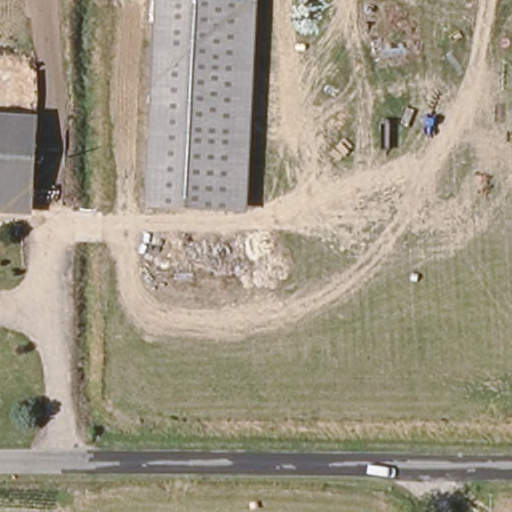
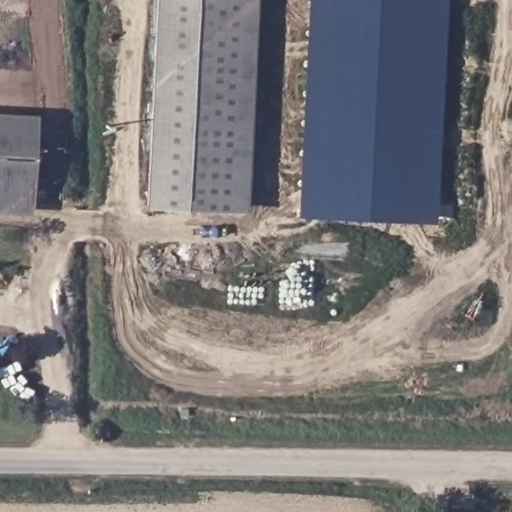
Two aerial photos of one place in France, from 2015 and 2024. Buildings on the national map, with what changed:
unchanged [(146,205),(158,0),(167,0),(156,205),(146,205)]
unchanged [(235,212),(156,205),(167,0),(199,0),(246,3),(235,212)]
unchanged [(199,0),(258,0),(258,1),(247,212),(235,212),(246,3),(199,0)]
new [(299,217),(309,0),(448,0),(435,224),(299,217)]
unchanged [(21,204),(0,203),(0,122),(21,124),(33,124),(30,204),(21,204)]

